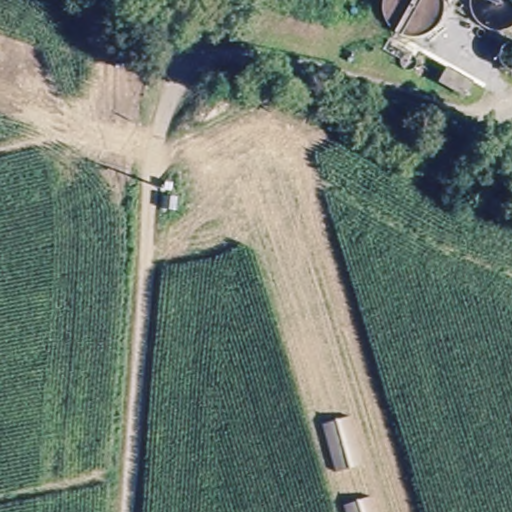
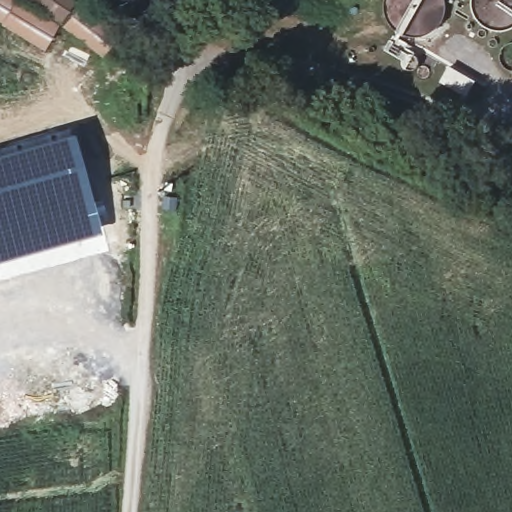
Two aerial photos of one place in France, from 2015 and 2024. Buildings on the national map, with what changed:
new [(44,50),(0,24),(0,0),(77,0),(44,50)]
unchanged [(464,102),(440,87),(444,80),(450,72),(472,88),(470,91),(464,102)]
new [(70,131),(103,233),(0,263),(0,148),(36,138),(70,131)]
new [(109,249),(0,280),(0,263),(103,233),(109,249)]

